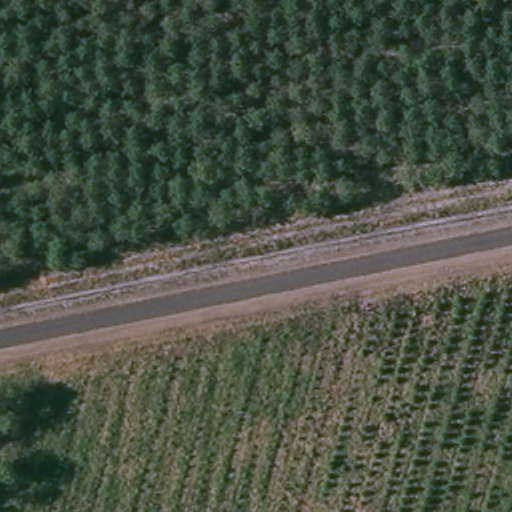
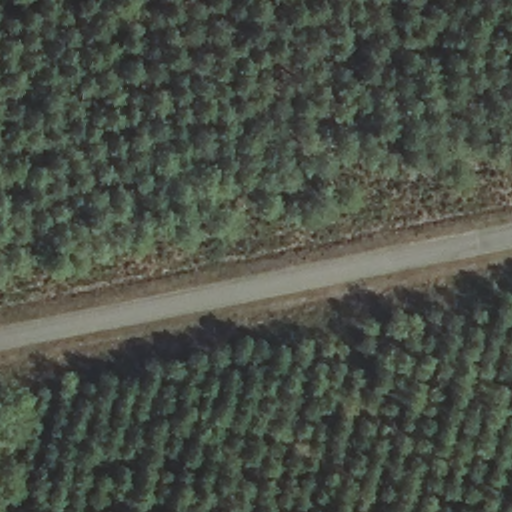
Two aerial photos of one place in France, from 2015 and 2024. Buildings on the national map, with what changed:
[]

